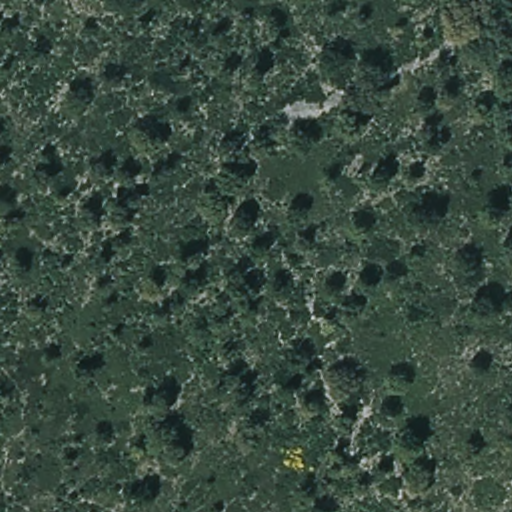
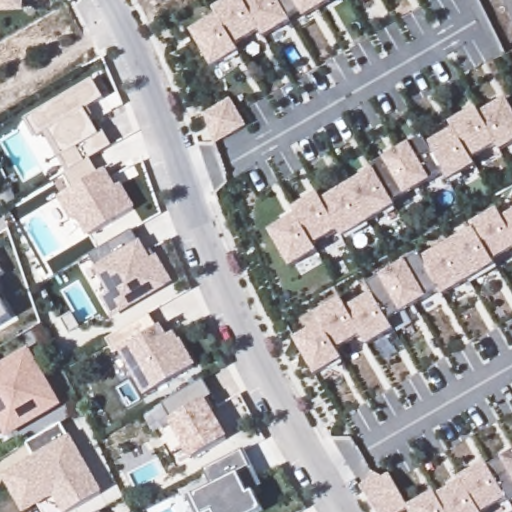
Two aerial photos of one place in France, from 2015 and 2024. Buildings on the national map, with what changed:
new [(24,12),(0,13),(0,0),(23,0),(24,12)]
new [(216,15),(213,9),(228,0),(243,0),(330,0),(331,2),(304,20),(299,11),(288,17),(291,22),(264,38),(260,31),(235,45),(239,52),(211,69),(190,32),(216,15)]
new [(103,99),(85,110),(98,133),(103,130),(112,147),(89,160),(98,175),(106,170),(117,187),(121,185),(129,199),(132,197),(138,210),(88,239),(78,221),(73,224),(58,199),(72,189),(63,175),(66,173),(43,133),(34,138),(23,119),(92,80),(103,99)]
new [(246,126),(214,145),(203,114),(230,99),(246,126)]
new [(512,110),(512,145),(500,152),(496,146),(472,160),(475,166),(449,182),(444,174),(430,180),(432,181),(404,197),(403,195),(393,201),(396,207),(342,239),(338,232),(314,245),(318,252),(290,269),(268,231),(295,216),(291,210),(318,194),(322,200),(374,170),(372,167),(383,160),(410,145),(423,137),(427,144),(452,130),(448,123),(475,107),(479,113),(505,100),(512,110)]
new [(492,261),(495,266),(442,296),(439,290),(427,296),(427,298),(401,315),(400,312),(388,320),(394,330),(366,346),(360,336),(337,350),(343,360),(315,376),(294,339),(319,324),(314,314),(340,298),(346,308),(372,292),(367,284),(419,254),(422,258),(472,229),(470,225),(497,209),(502,217),(512,212),(512,250),(492,261)]
new [(137,241),(140,240),(151,259),(156,255),(172,282),(111,318),(100,298),(107,294),(93,268),(95,267),(87,254),(129,229),(137,241)]
new [(0,276),(0,268),(4,275),(0,276)]
new [(0,323),(0,301),(10,317),(0,323)]
new [(160,330),(162,328),(169,340),(174,337),(178,344),(180,343),(194,368),(147,395),(121,352),(115,355),(106,340),(150,315),(160,330)]
new [(62,405),(5,438),(0,430),(0,363),(29,347),(62,405)]
new [(212,396),(205,400),(228,440),(191,460),(168,421),(170,420),(161,403),(202,380),(212,396)]
new [(69,435),(103,492),(71,512),(61,512),(53,498),(28,512),(21,512),(1,475),(32,457),(25,445),(60,424),(68,436),(69,435)]
new [(214,490),(205,474),(242,453),(252,469),(263,487),(256,491),(268,511),(266,512),(203,512),(196,500),(214,490)]
new [(509,503),(507,500),(485,512),(409,512),(408,510),(404,512),(376,512),(360,486),(370,471),(383,478),(389,473),(409,506),(434,492),(436,495),(460,481),(458,478),(486,462),(489,467),(512,454),(512,501),(509,503)]
new [(96,512),(98,511),(98,512),(96,512)]

